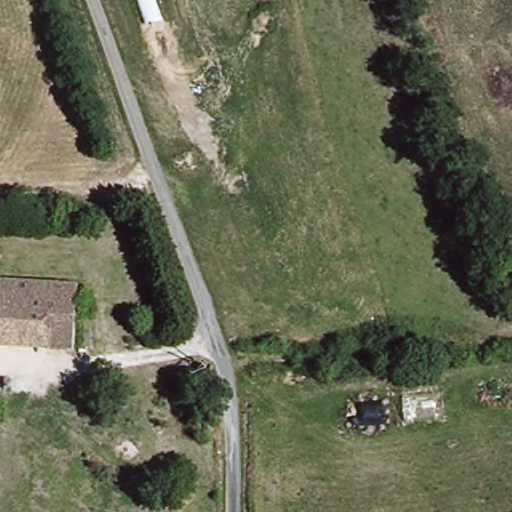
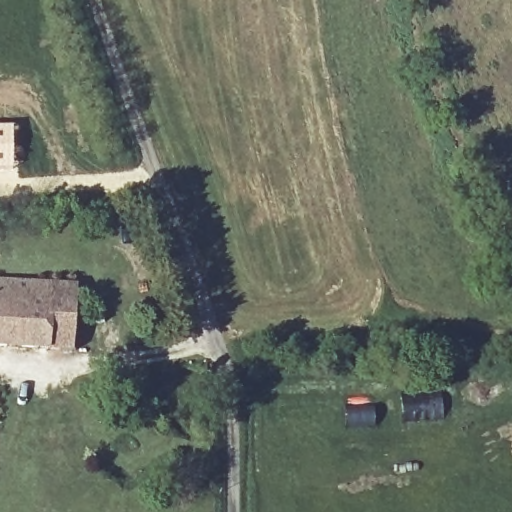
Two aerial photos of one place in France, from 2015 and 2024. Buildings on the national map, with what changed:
new [(14,171),(0,170),(0,125),(14,126),(14,171)]
unchanged [(73,358),(0,351),(0,280),(75,288),(73,358)]

